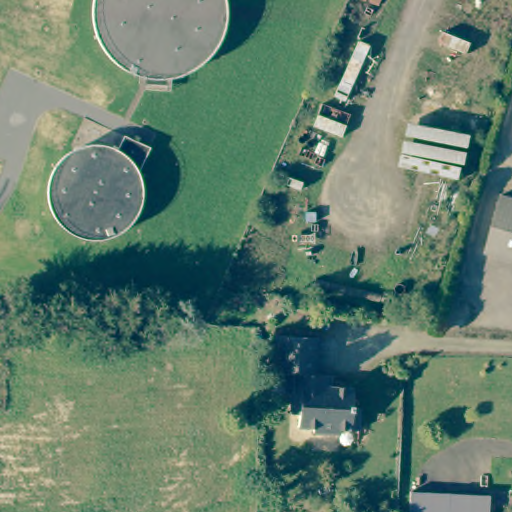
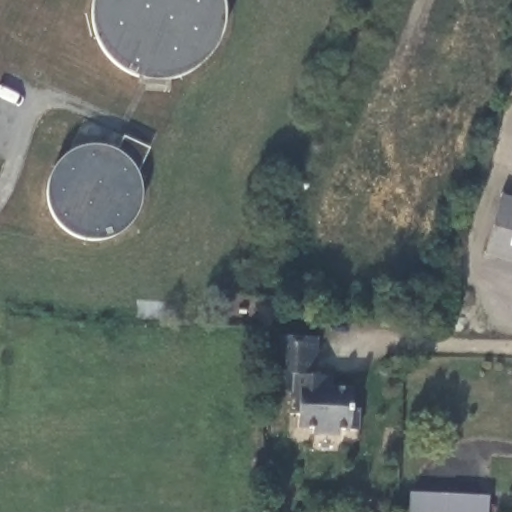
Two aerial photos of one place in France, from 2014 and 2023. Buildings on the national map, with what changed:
unchanged [(512,257),(487,250),(503,192),(512,194),(512,257)]
unchanged [(352,405),(359,405),(359,425),(341,425),(341,430),(314,430),(314,425),(298,424),(298,412),(293,412),(293,393),(273,393),(273,337),(316,337),(316,373),(332,373),(332,386),(352,386),(352,405)]
unchanged [(411,512),(411,491),(441,493),(489,494),(489,512),(411,512)]

